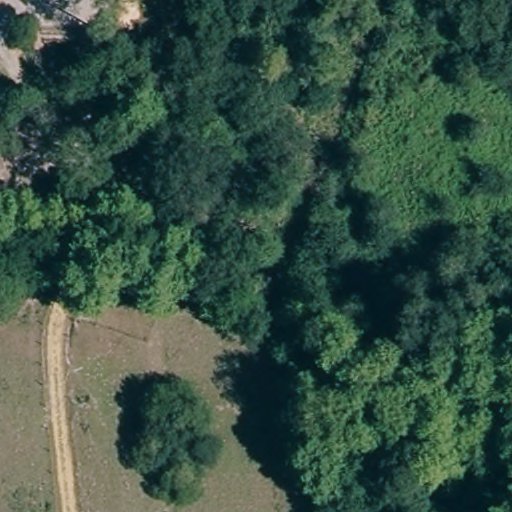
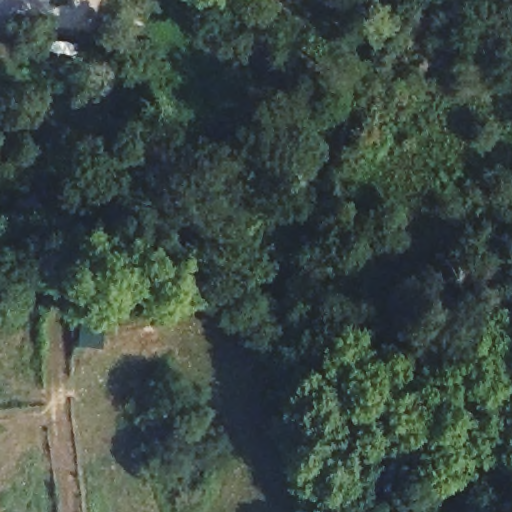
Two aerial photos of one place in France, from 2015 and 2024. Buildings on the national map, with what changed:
[]

